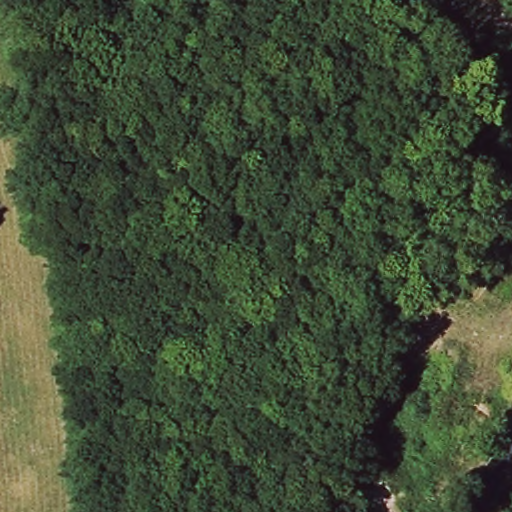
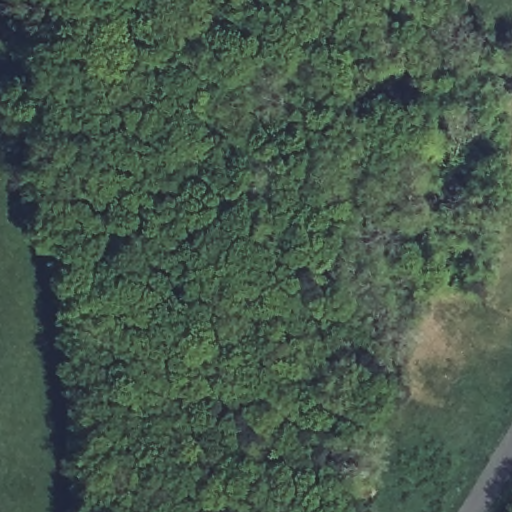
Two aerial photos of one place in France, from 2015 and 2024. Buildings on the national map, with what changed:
[]

